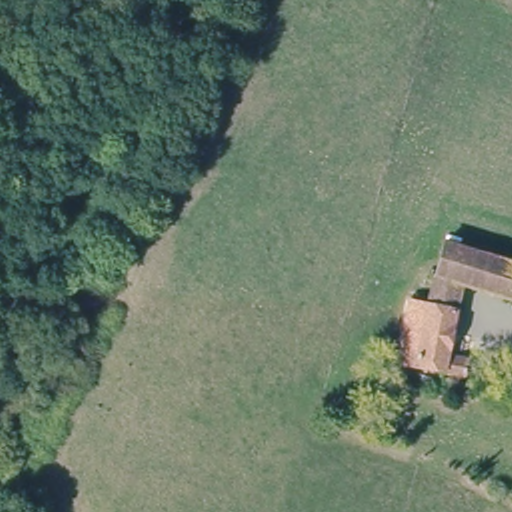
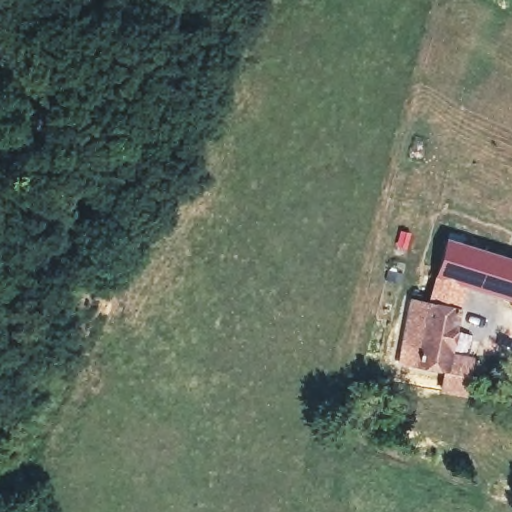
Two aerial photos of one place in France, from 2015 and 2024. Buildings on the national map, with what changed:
unchanged [(422,288),(430,290),(442,240),(512,258),(512,296),(465,283),(448,350),(466,353),(463,372),(442,368),(398,359),(410,293),(420,296),(422,288)]

